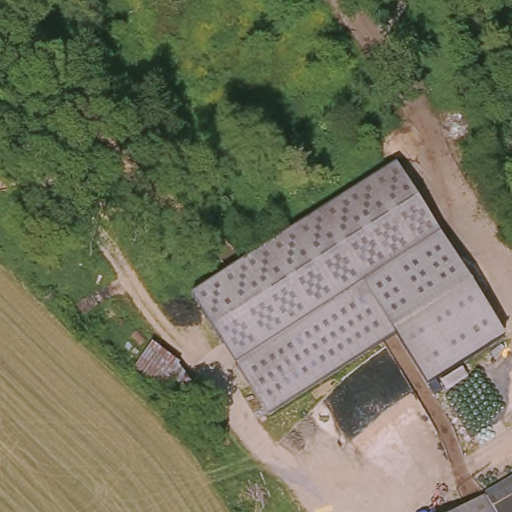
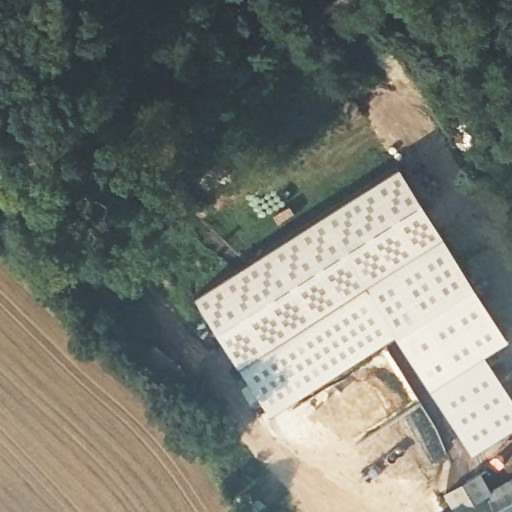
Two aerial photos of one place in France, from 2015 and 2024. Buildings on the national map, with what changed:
unchanged [(402,171),(496,332),(504,345),(426,390),(425,389),(396,339),(265,415),(193,293),(402,171)]
new [(428,389),(483,357),(512,401),(512,428),(473,454),(428,389)]
new [(471,468),(483,492),(447,510),(435,485),(471,468)]
unchanged [(486,512),(482,503),(512,488),(512,512),(486,512)]
unchanged [(486,512),(464,512),(482,503),(486,512)]

